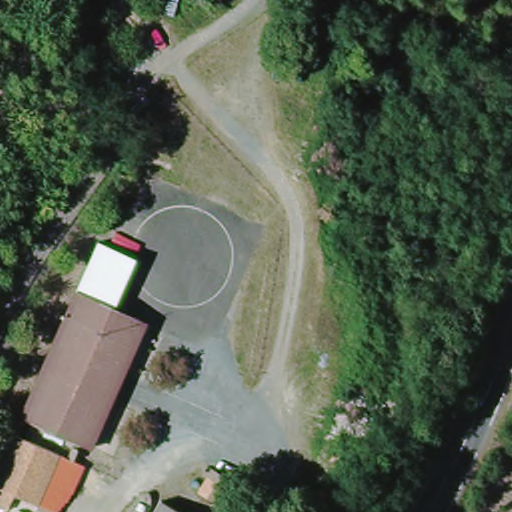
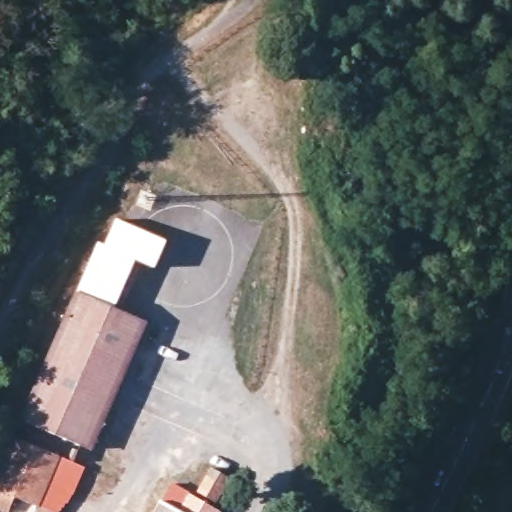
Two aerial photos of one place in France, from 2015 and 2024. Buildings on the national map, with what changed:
new [(167,240),(155,266),(142,261),(104,245),(115,218),(167,240)]
unchanged [(81,287),(98,243),(142,261),(121,304),(81,287)]
unchanged [(121,304),(151,317),(128,372),(91,444),(22,413),(81,287),(121,304)]
unchanged [(18,436),(63,457),(40,507),(16,497),(9,512),(0,508),(0,475),(18,436)]
unchanged [(68,507),(65,504),(61,512),(38,512),(40,507),(63,457),(87,467),(68,507)]
unchanged [(227,478),(214,500),(197,490),(210,468),(227,478)]
unchanged [(189,512),(159,512),(167,498),(189,512)]

